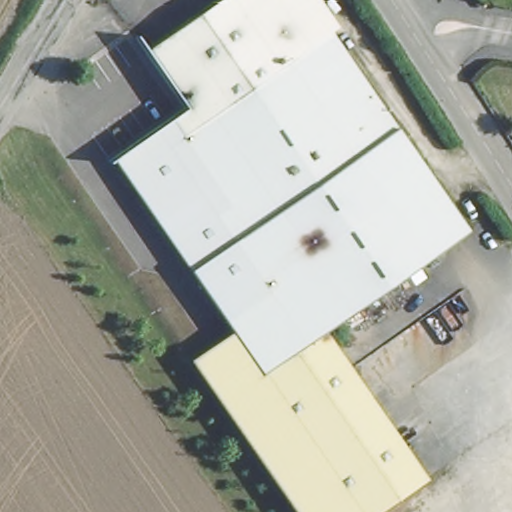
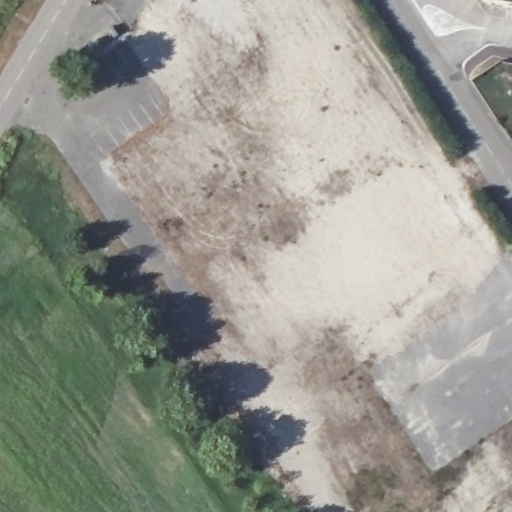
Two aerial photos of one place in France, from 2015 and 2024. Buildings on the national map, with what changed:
demolished [(299,512),(193,358),(235,332),(116,157),(189,108),(148,52),(221,0),(324,0),(343,27),(336,32),(475,232),(331,332),(428,476),(378,512),(299,512)]

